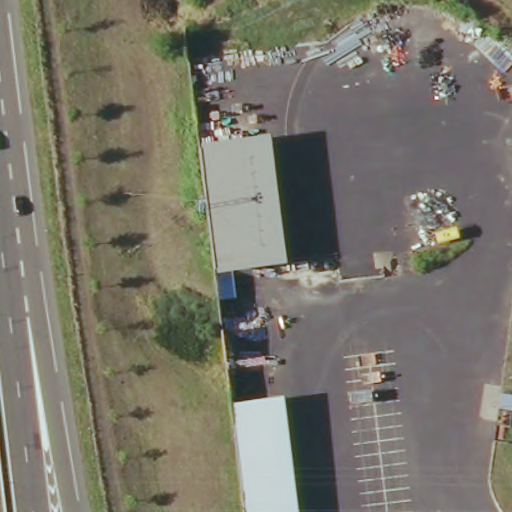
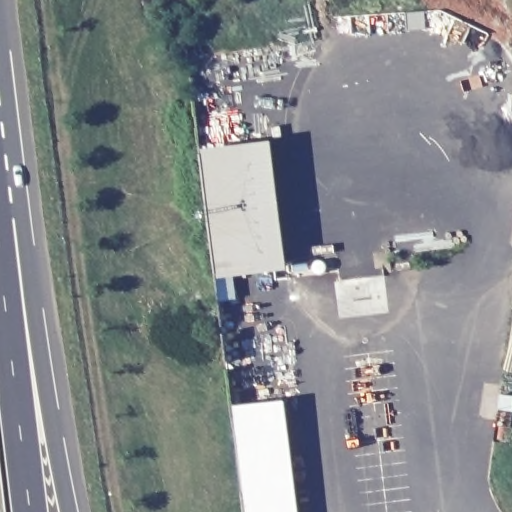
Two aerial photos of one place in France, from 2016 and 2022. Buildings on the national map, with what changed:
unchanged [(197,155),(268,146),(285,266),(217,274),(214,272),(197,155)]
unchanged [(278,398),(293,512),(241,512),(228,405),(278,398)]

